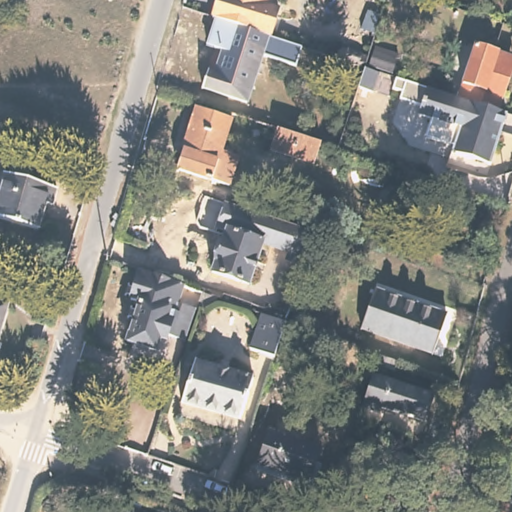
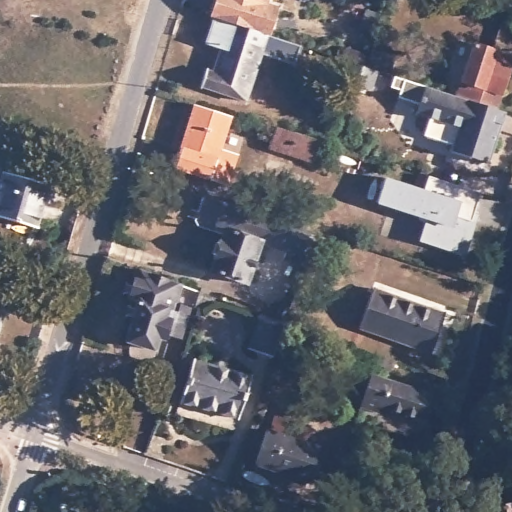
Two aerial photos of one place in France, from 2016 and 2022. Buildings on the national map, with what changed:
unchanged [(280,6),(272,30),(214,12),(218,0),(268,0),(276,0),(282,1),(280,6)]
unchanged [(203,44),(214,12),(272,30),(271,37),(302,46),(297,65),(265,55),(267,48),(223,33),(218,50),(203,44)]
unchanged [(267,48),(265,55),(250,103),(206,89),(211,73),(217,75),(225,52),(218,50),(223,33),(267,48)]
unchanged [(480,49),(512,60),(512,84),(502,114),(462,100),(480,49)]
unchanged [(376,69),(370,88),(356,84),(362,64),(376,69)]
unchanged [(472,161),(452,154),(454,148),(427,139),(433,121),(420,117),(422,108),(402,101),(404,94),(395,90),(398,79),(462,100),(502,114),(496,132),(502,134),(493,161),(492,167),(472,161)]
unchanged [(229,119),(220,152),(235,157),(225,186),(175,170),(195,108),(229,119)]
unchanged [(320,142),(312,163),(270,149),(276,128),(320,142)]
unchanged [(51,204),(44,202),(37,227),(0,217),(0,189),(6,170),(56,185),(51,204)]
new [(386,179),(425,191),(429,177),(482,193),(472,221),(475,222),(463,256),(421,243),(429,219),(377,203),(386,179)]
unchanged [(217,228),(225,202),(316,230),(306,265),(289,260),(291,251),(266,244),(271,227),(251,220),(246,235),(230,230),(229,232),(217,228)]
unchanged [(230,230),(246,235),(251,220),(271,227),(266,244),(252,285),(216,272),(229,232),(230,230)]
unchanged [(140,304),(171,313),(165,334),(154,331),(148,349),(121,341),(132,302),(123,299),(132,270),(147,276),(140,304)]
unchanged [(174,285),(169,303),(189,309),(180,339),(165,334),(171,313),(140,304),(147,276),(174,285)]
unchanged [(451,312),(438,352),(367,327),(380,288),(451,312)]
unchanged [(0,335),(0,298),(10,301),(0,335)]
unchanged [(282,322),(271,357),(248,350),(260,313),(282,322)]
unchanged [(0,352),(0,342),(2,343),(0,352)]
unchanged [(255,376),(244,417),(185,401),(195,361),(255,376)]
unchanged [(432,395),(424,421),(382,407),(379,412),(361,407),(372,376),(432,395)]
unchanged [(292,430),(289,440),(321,452),(311,483),(297,478),(296,480),(262,466),(276,424),(292,430)]
unchanged [(512,501),(512,512),(489,512),(487,503),(512,501)]

